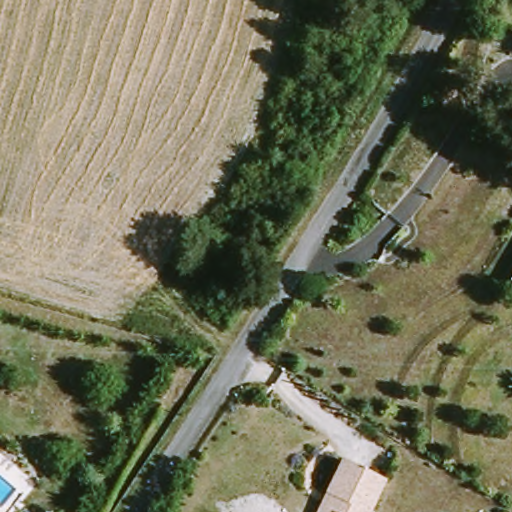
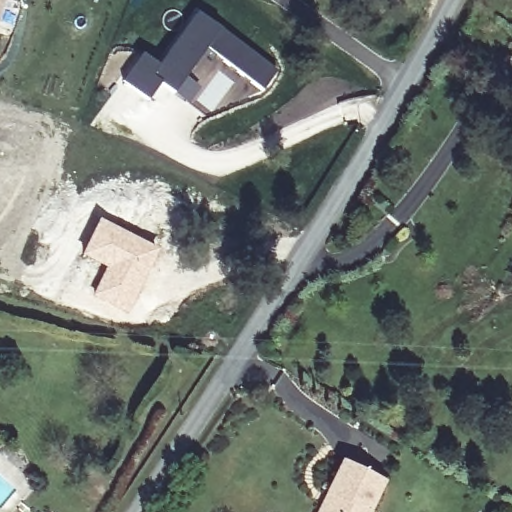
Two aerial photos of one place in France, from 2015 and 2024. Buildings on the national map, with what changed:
new [(0,12),(0,0),(3,0),(0,12)]
new [(263,89),(205,49),(174,93),(161,83),(149,100),(123,79),(142,54),(158,66),(197,12),(220,28),(278,69),(263,89)]
new [(98,218),(160,248),(128,313),(92,296),(105,267),(80,255),(98,218)]
unchanged [(343,463),(384,484),(370,512),(319,512),(327,497),(343,463)]

